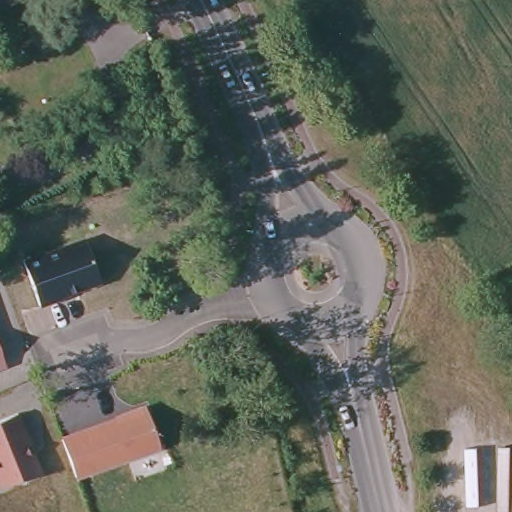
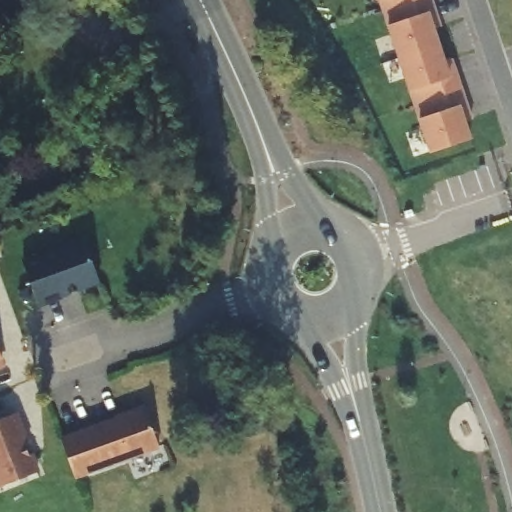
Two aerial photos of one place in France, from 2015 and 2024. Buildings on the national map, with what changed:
new [(440,27),(433,30),(445,62),(451,60),(471,120),(465,122),(470,140),(431,153),(379,0),(431,0),(440,27)]
unchanged [(91,239),(105,282),(41,305),(30,263),(91,239)]
unchanged [(7,371),(0,374),(0,353),(7,371)]
unchanged [(117,416),(139,407),(155,448),(71,480),(56,442),(118,418),(117,416)]
unchanged [(27,448),(31,458),(33,457),(41,475),(2,491),(0,486),(0,424),(18,416),(31,447),(27,448)]

